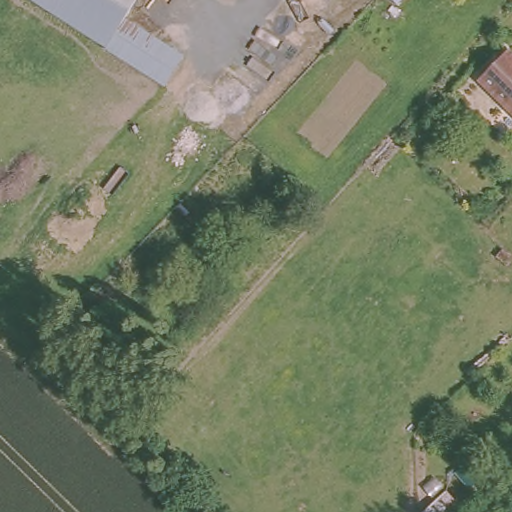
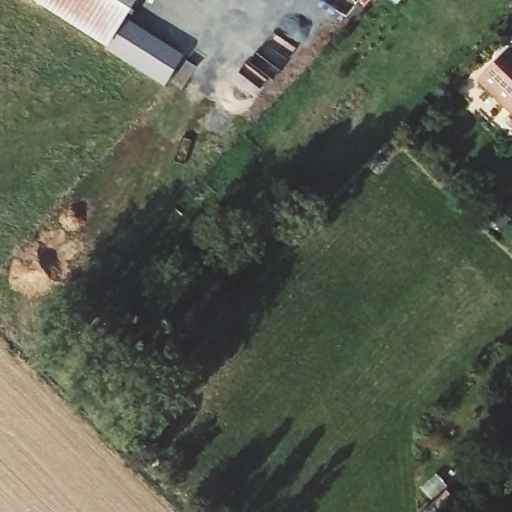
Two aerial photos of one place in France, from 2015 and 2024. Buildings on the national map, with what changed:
unchanged [(129,17),(189,56),(170,83),(40,0),(140,0),(129,17)]
unchanged [(394,2),(392,0),(396,0),(394,2)]
unchanged [(506,54),(512,60),(512,119),(477,83),(506,54)]

